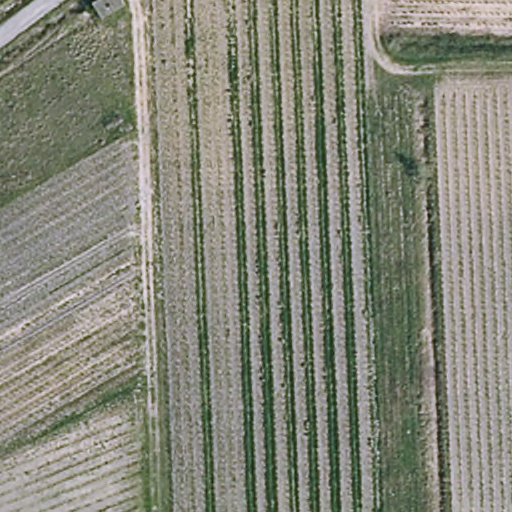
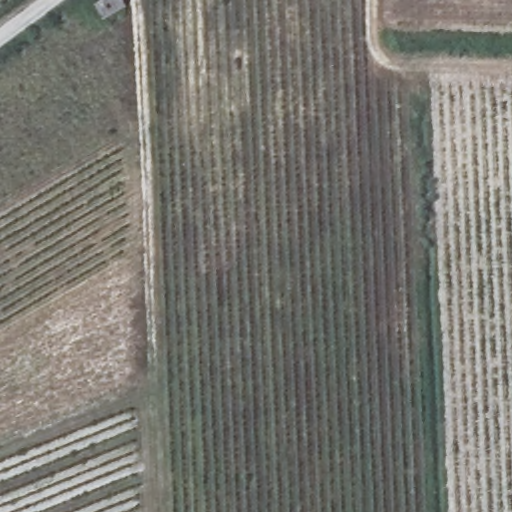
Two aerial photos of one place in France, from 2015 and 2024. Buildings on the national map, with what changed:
unchanged [(94,0),(120,0),(123,4),(102,17),(92,1),(94,0)]

